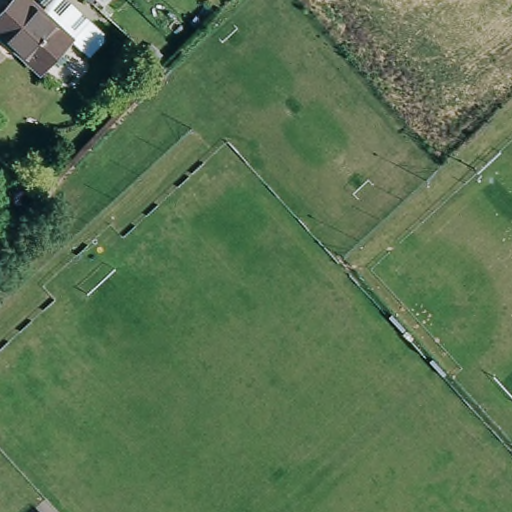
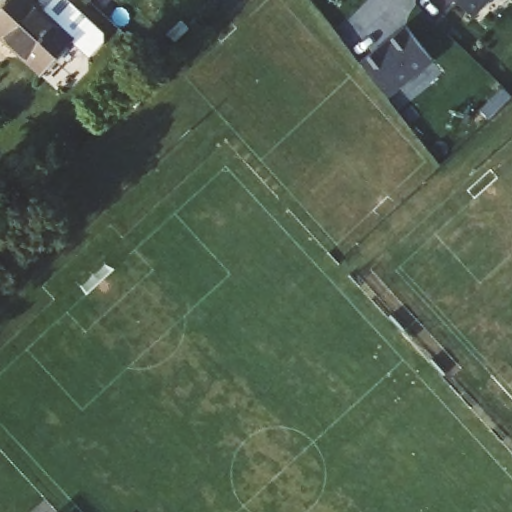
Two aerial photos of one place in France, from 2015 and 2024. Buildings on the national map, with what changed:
unchanged [(67,46),(37,78),(0,44),(0,15),(14,0),(18,0),(38,19),(67,46)]
unchanged [(56,0),(57,0),(99,39),(99,46),(84,61),(67,46),(38,19),(56,0)]
unchanged [(83,0),(97,0),(90,7),(83,0)]
new [(455,0),(490,0),(474,17),(455,0)]
new [(375,52),(377,53),(383,48),(382,47),(407,28),(434,62),(389,97),(362,63),(375,52)]

